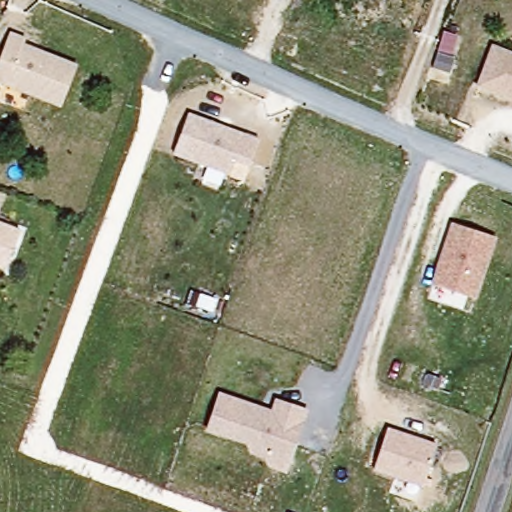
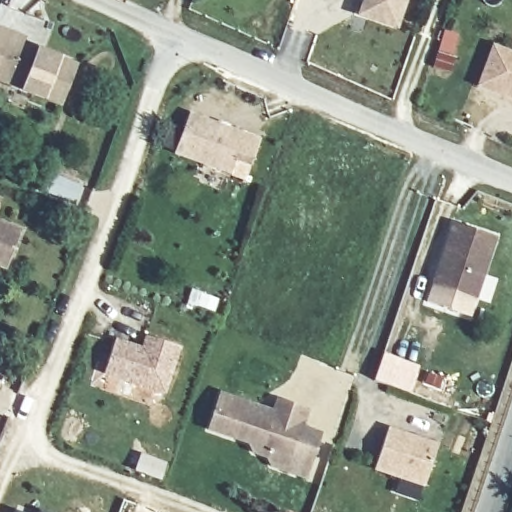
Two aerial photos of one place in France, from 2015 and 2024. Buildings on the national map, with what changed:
new [(409,0),(400,28),(372,19),(362,15),(368,0),(409,0)]
unchanged [(9,29),(27,35),(24,42),(77,63),(60,107),(0,84),(0,54),(9,29)]
unchanged [(496,43),(512,50),(512,95),(481,82),(496,43)]
unchanged [(185,111),(258,137),(249,166),(235,161),(230,175),(171,155),(185,111)]
unchanged [(20,227),(5,269),(0,267),(0,220),(20,227)]
unchanged [(449,221),(496,237),(477,299),(430,284),(449,221)]
new [(116,338),(142,348),(147,335),(180,346),(165,393),(104,372),(116,338)]
unchanged [(267,467),(263,458),(249,452),(247,445),(205,431),(217,391),(270,408),(274,397),(310,408),(288,474),(267,467)]
unchanged [(387,425),(438,443),(424,487),(373,471),(387,425)]

